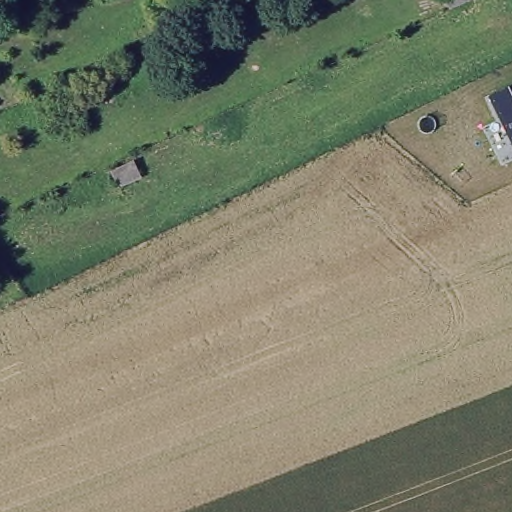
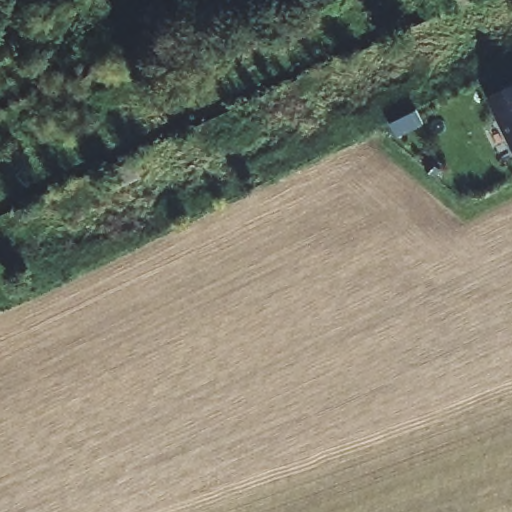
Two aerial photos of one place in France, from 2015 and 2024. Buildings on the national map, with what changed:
unchanged [(447,0),(466,0),(451,7),(447,0)]
unchanged [(489,94),(512,84),(512,141),(489,94)]

